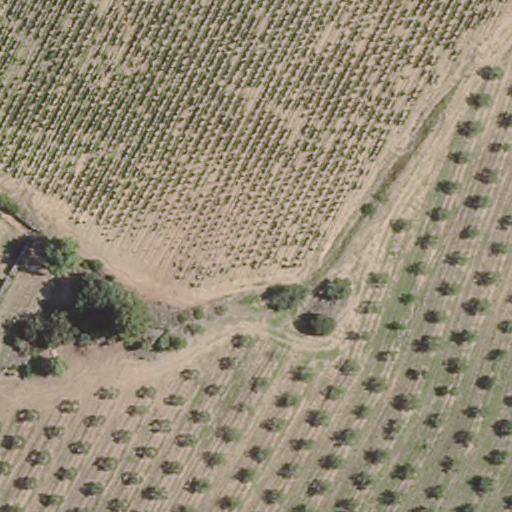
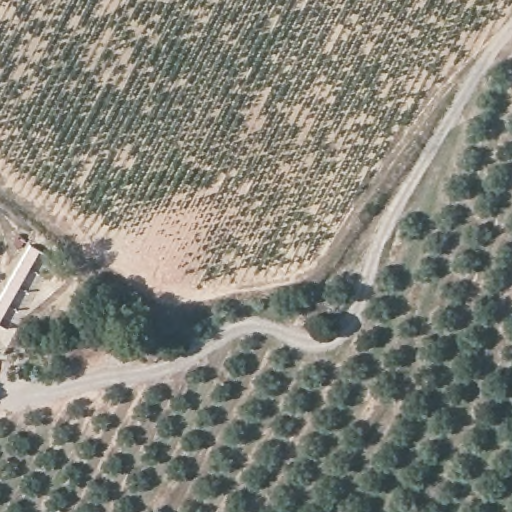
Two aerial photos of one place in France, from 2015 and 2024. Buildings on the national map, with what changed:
unchanged [(13,278),(22,284),(7,308),(0,304),(0,299),(13,278)]

